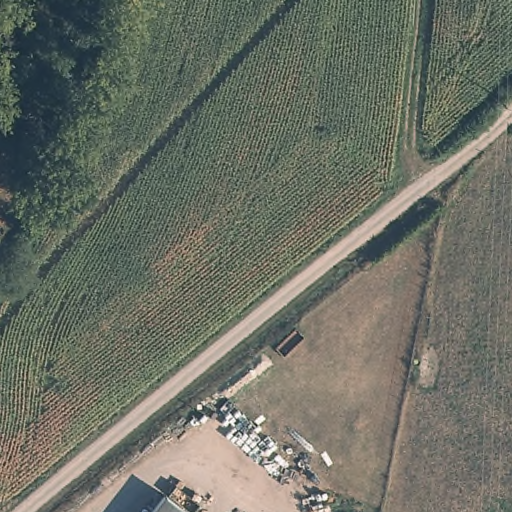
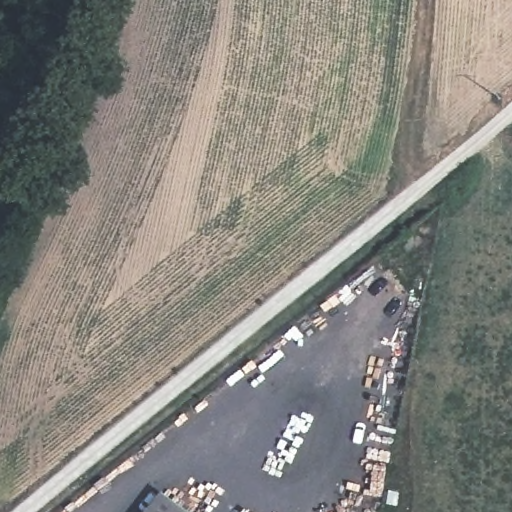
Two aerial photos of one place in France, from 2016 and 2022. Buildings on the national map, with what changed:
unchanged [(191,512),(157,512),(169,495),(191,512)]

